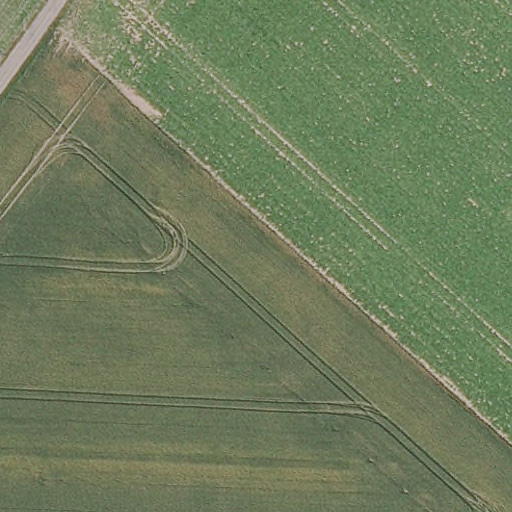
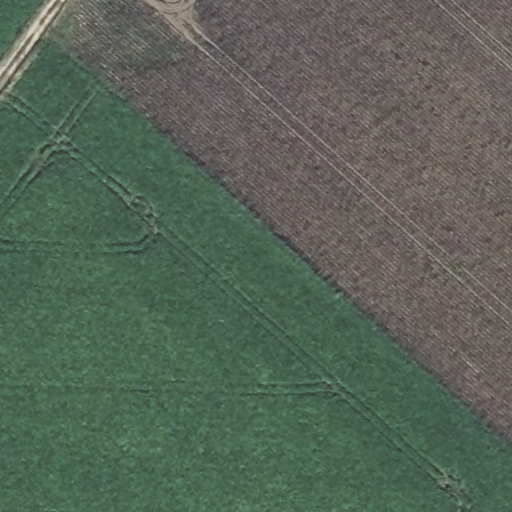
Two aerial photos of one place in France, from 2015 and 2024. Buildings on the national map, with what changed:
[]

